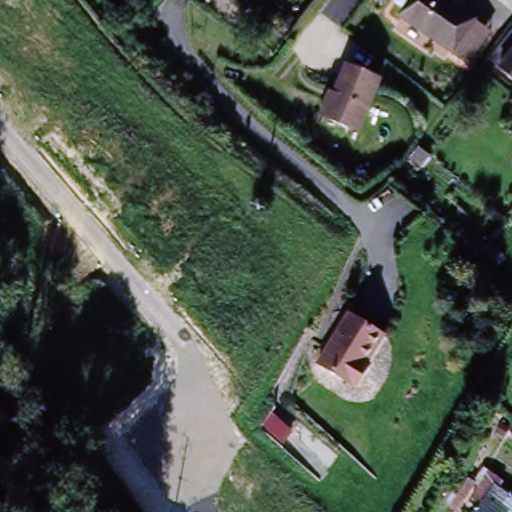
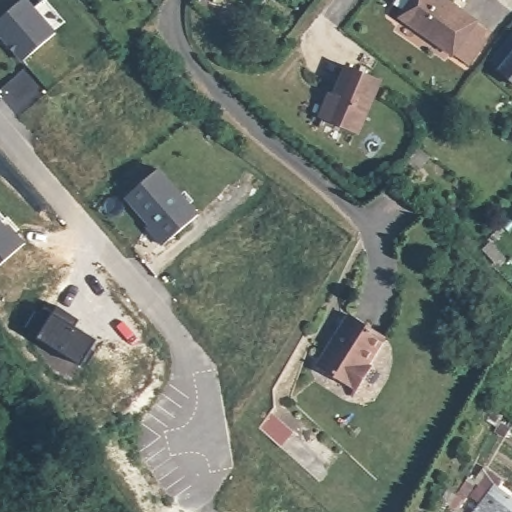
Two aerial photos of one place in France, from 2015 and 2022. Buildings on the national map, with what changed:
new [(35,10),(46,0),(65,23),(53,32),(55,35),(23,62),(0,35),(0,21),(24,0),(25,0),(35,10)]
unchanged [(465,65),(450,54),(396,16),(407,0),(442,0),(472,21),(470,24),(485,35),(465,65)]
unchanged [(512,71),(496,57),(512,38),(512,71)]
unchanged [(387,77),(364,129),(325,112),(332,95),(337,97),(352,62),(387,77)]
unchanged [(419,150),(431,160),(420,172),(408,164),(419,150)]
new [(158,171),(197,216),(162,246),(152,234),(155,232),(127,199),(158,171)]
new [(5,220),(0,224),(7,230),(9,228),(13,233),(24,245),(0,266),(0,214),(5,220)]
unchanged [(496,271),(493,268),(496,265),(482,250),(497,232),(500,235),(492,245),(506,260),(496,271)]
new [(38,345),(40,342),(27,333),(35,320),(40,323),(45,315),(52,319),(57,310),(80,325),(77,331),(99,345),(93,355),(98,358),(90,372),(85,370),(83,372),(76,368),(65,361),(38,345)]
unchanged [(385,337),(368,364),(370,365),(357,387),(320,362),(351,315),(385,337)]
unchanged [(470,498),(485,480),(490,473),(502,482),(497,489),(512,501),(512,512),(474,512),(480,505),(470,498)]
unchanged [(470,488),(455,510),(448,506),(462,483),(470,488)]

